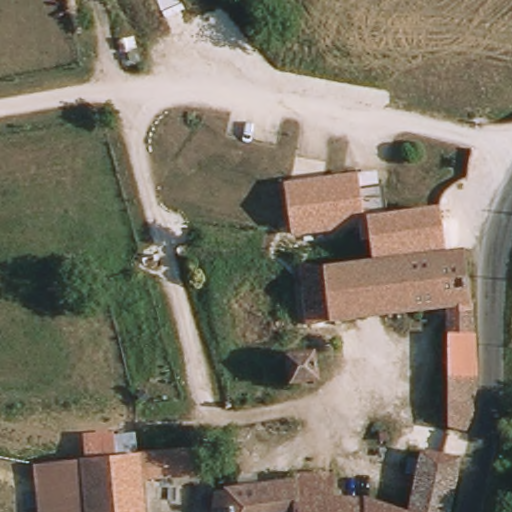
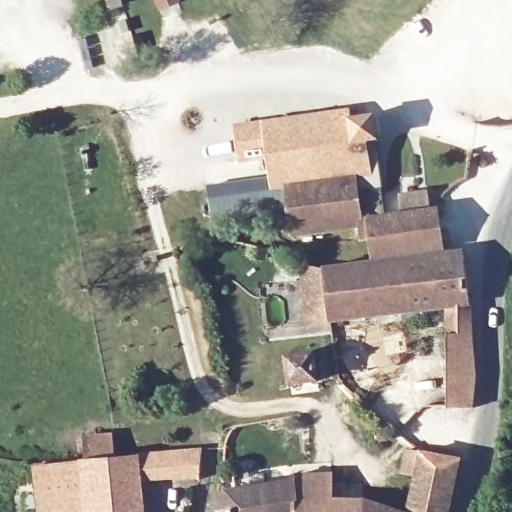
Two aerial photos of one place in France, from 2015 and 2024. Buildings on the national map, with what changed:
new [(348,117),(378,114),(380,142),(376,144),(380,172),(285,183),(285,187),(271,190),(268,160),(240,165),(233,125),(350,109),(348,117)]
unchanged [(380,172),(386,218),(373,220),(374,227),(293,237),(285,183),(380,172)]
unchanged [(444,248),(401,253),(379,256),(373,220),(398,216),(442,210),(444,248)]
unchanged [(471,315),(473,336),(476,379),(475,407),(469,406),(465,430),(449,427),(450,308),(313,322),(305,256),(316,256),(318,270),(355,265),(366,264),(402,260),(465,253),(471,315)]
unchanged [(312,350),(314,380),(292,381),(289,351),(312,350)]
unchanged [(113,433),(113,436),(136,432),(138,455),(87,459),(85,436),(113,433)]
unchanged [(238,486),(265,485),(265,472),(333,471),(333,496),(365,500),(386,505),(406,511),(418,475),(406,470),(412,448),(458,462),(444,512),(212,512),(215,477),(238,478),(238,486)]
unchanged [(143,512),(85,512),(84,460),(156,453),(199,450),(198,473),(153,474),(156,483),(138,485),(143,512)]
unchanged [(39,512),(34,466),(84,460),(85,512),(39,512)]

